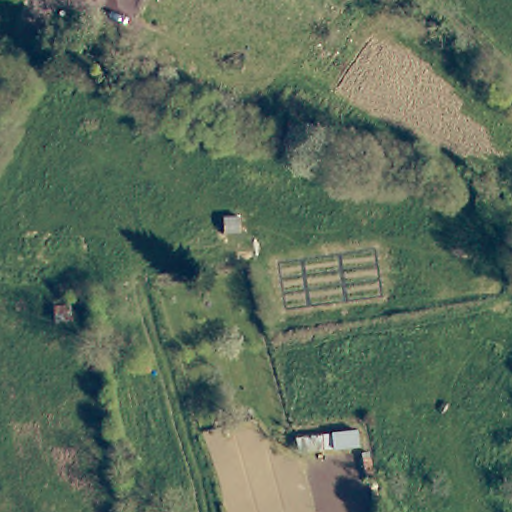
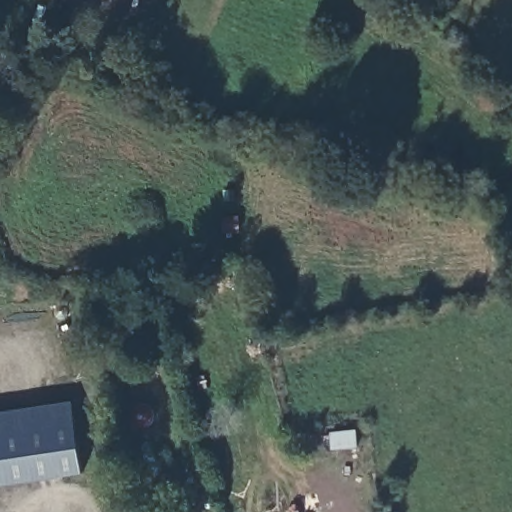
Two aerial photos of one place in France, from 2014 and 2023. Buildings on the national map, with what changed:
new [(0,486),(0,412),(71,401),(82,473),(0,486)]

